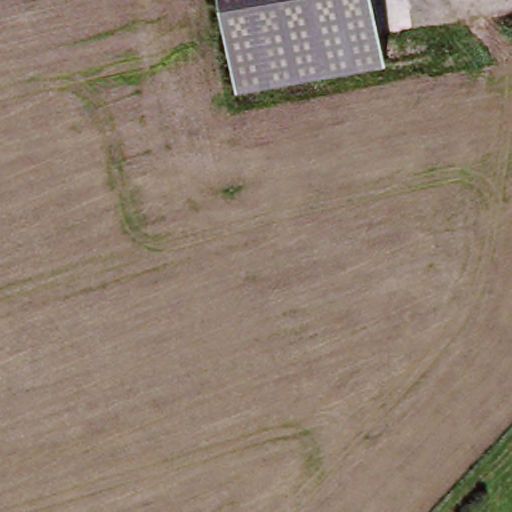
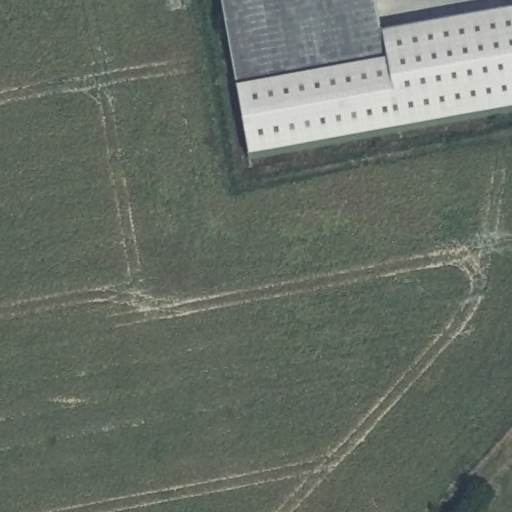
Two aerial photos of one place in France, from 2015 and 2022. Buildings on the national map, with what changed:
unchanged [(237,84),(221,0),(375,0),(385,56),(237,84)]
new [(382,36),(512,13),(512,113),(249,159),(237,84),(385,56),(382,36)]

